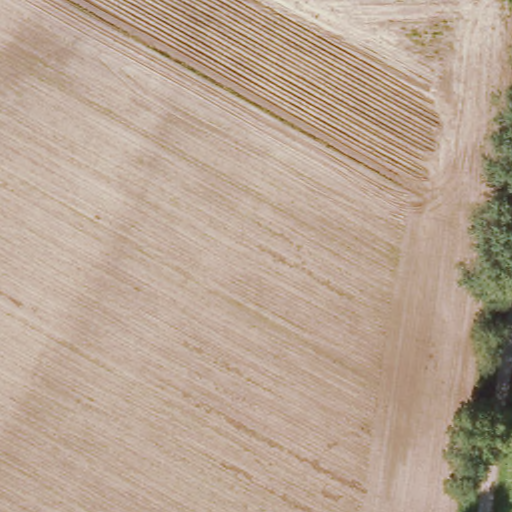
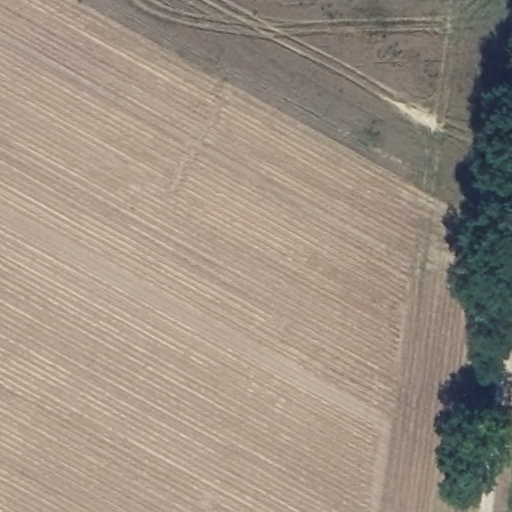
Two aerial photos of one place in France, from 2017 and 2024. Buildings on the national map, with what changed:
[]

